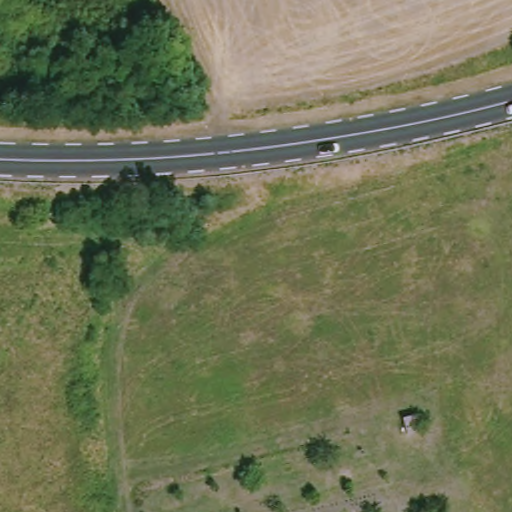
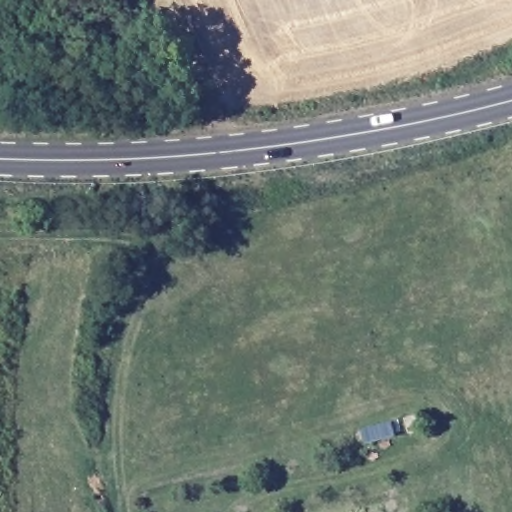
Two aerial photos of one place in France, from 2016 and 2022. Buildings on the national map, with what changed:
unchanged [(408,433),(405,420),(416,417),(420,431),(408,433)]

